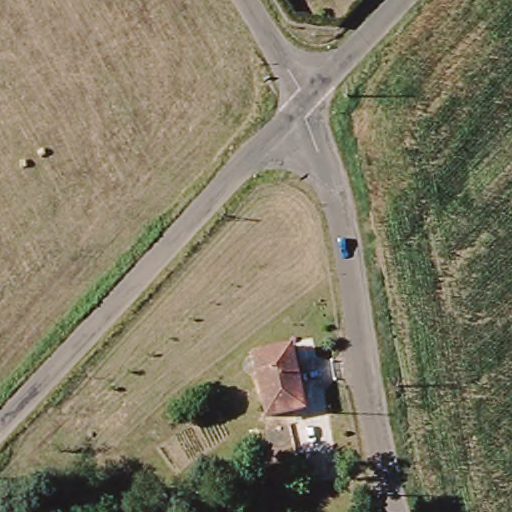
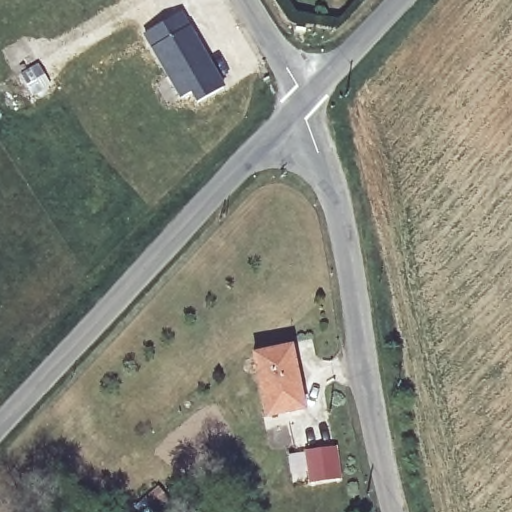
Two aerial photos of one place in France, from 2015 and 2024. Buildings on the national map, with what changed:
new [(222,84),(196,99),(190,89),(180,95),(151,44),(143,31),(180,10),(187,24),(206,55),(210,64),(222,84)]
unchanged [(268,414),(256,353),(293,346),(304,407),(268,414)]
unchanged [(311,473),(308,450),(330,447),(334,471),(311,473)]
unchanged [(152,466),(159,480),(143,489),(135,477),(152,466)]

